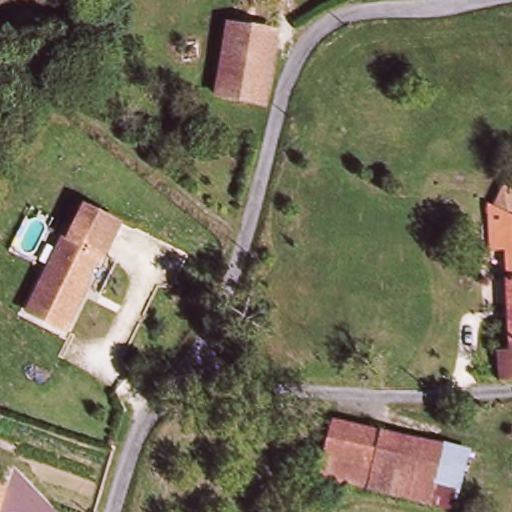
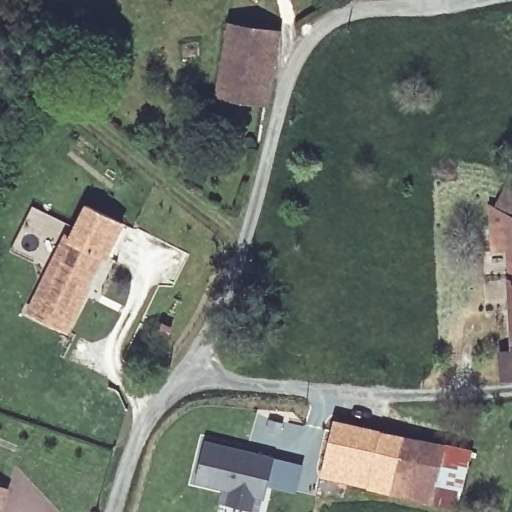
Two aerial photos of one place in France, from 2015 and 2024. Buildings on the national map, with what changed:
unchanged [(234,28),(282,34),(273,107),(224,100),(234,28)]
unchanged [(87,289),(85,288),(82,293),(87,295),(70,330),(34,312),(70,236),(75,238),(90,207),(125,224),(110,257),(104,254),(87,289)]
unchanged [(511,255),(491,256),(491,209),(501,213),(512,218),(512,266),(511,255)]
unchanged [(504,386),(501,357),(512,356),(512,385),(504,386)]
unchanged [(387,497),(336,484),(350,424),(401,436),(387,497)]
unchanged [(387,497),(401,436),(458,449),(445,509),(387,497)]
new [(273,456),(264,499),(255,498),(254,510),(225,504),(227,490),(194,482),(205,439),(273,456)]
unchanged [(5,512),(0,512),(0,485),(12,489),(5,512)]

